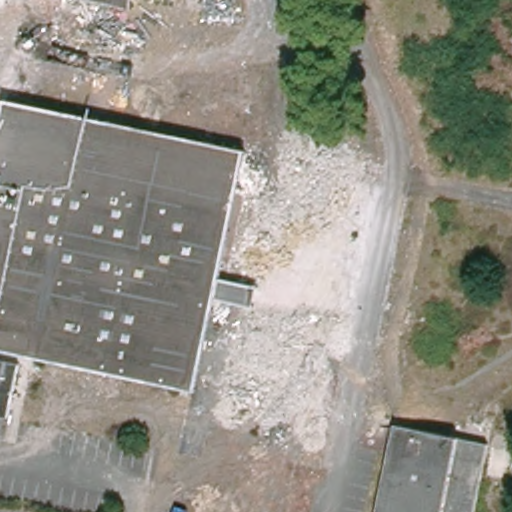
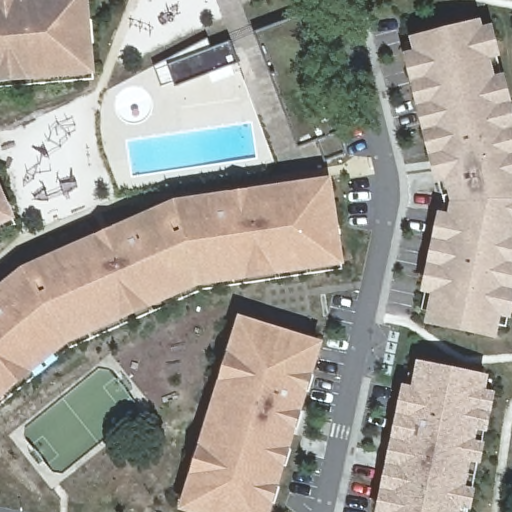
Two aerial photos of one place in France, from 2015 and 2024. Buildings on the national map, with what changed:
new [(96,75),(0,83),(0,0),(90,0),(96,75)]
new [(345,153),(325,161),(316,140),(298,146),(254,31),(299,16),(345,153)]
new [(427,323),(433,294),(421,292),(437,212),(449,214),(453,201),(447,181),(436,183),(404,53),(414,51),(410,37),(481,19),(483,27),(492,24),(501,57),(492,59),(496,76),(506,73),(512,98),(512,316),(511,318),(501,317),(497,339),(427,323)]
new [(238,62),(176,84),(176,81),(162,85),(154,65),(207,38),(211,48),(231,40),(238,62)]
demolished [(3,102),(234,150),(209,273),(251,283),(281,142),(360,158),(322,340),(291,333),(293,326),(261,319),(259,327),(258,327),(243,323),(247,304),(204,294),(186,382),(0,343),(0,116),(3,102)]
new [(345,263),(198,286),(68,342),(0,398),(0,284),(22,266),(174,199),(332,176),(345,263)]
new [(17,220),(0,228),(0,182),(17,220)]
new [(272,512),(190,512),(180,509),(241,315),(322,340),(272,512)]
new [(413,387),(419,361),(490,376),(487,391),(496,393),(471,512),(377,512),(403,385),(413,387)]
demolished [(204,388),(234,391),(230,415),(202,411),(204,388)]
demolished [(378,512),(396,424),(488,443),(474,512),(378,512)]

